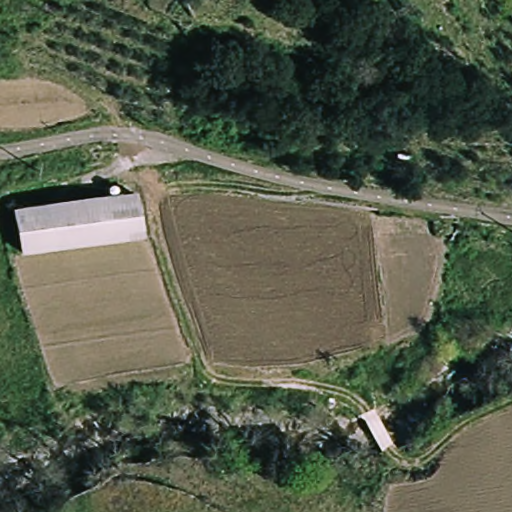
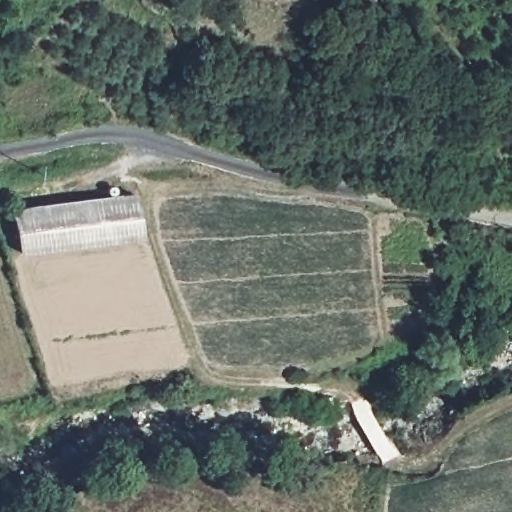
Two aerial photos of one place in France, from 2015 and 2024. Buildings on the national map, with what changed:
unchanged [(25,254),(13,212),(130,194),(141,234),(25,254)]

